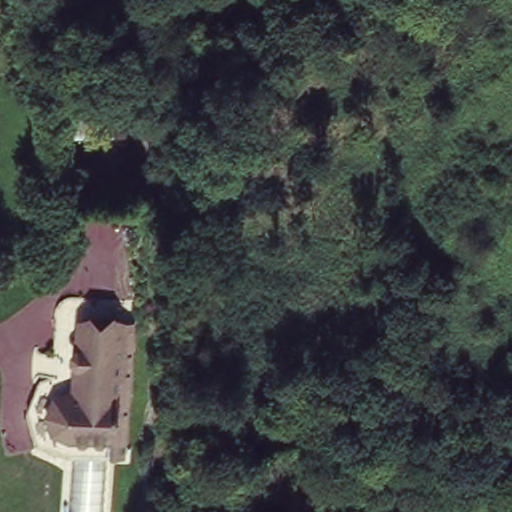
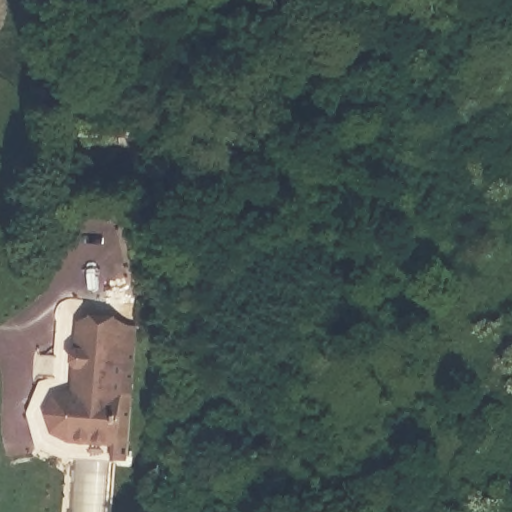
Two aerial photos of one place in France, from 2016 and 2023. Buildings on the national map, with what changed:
unchanged [(71,102),(120,102),(120,136),(70,134),(71,102)]
unchanged [(120,327),(118,396),(116,442),(71,440),(55,433),(49,416),(55,400),(72,393),(74,393),(77,324),(120,327)]
unchanged [(131,327),(127,442),(116,442),(118,396),(120,327),(131,327)]

